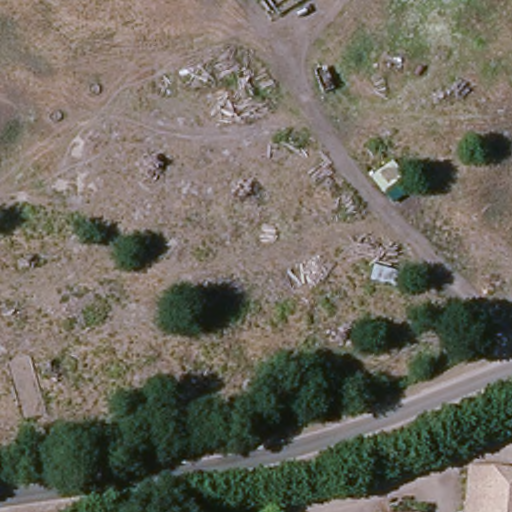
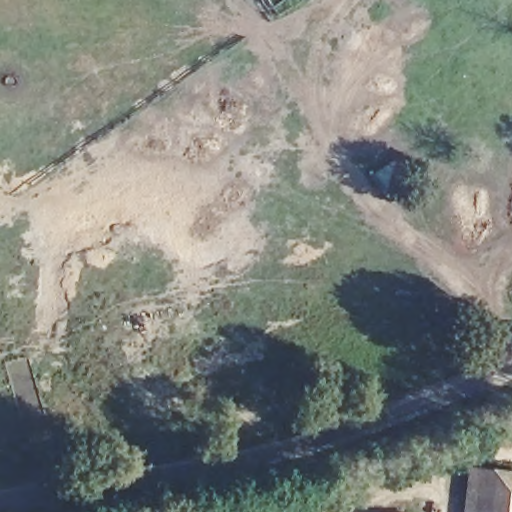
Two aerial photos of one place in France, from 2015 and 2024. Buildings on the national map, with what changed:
unchanged [(512,475),(512,493),(510,512),(467,512),(470,473),(512,475)]

